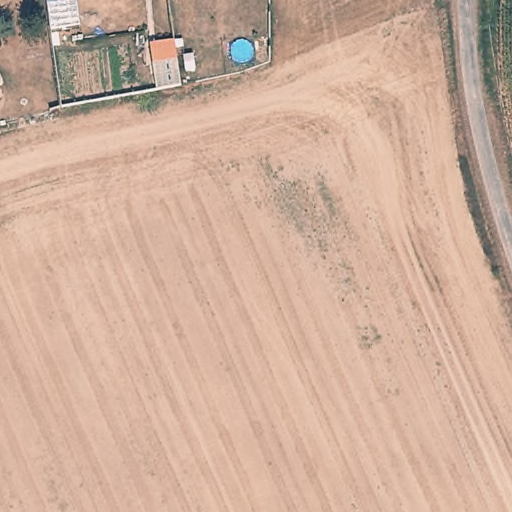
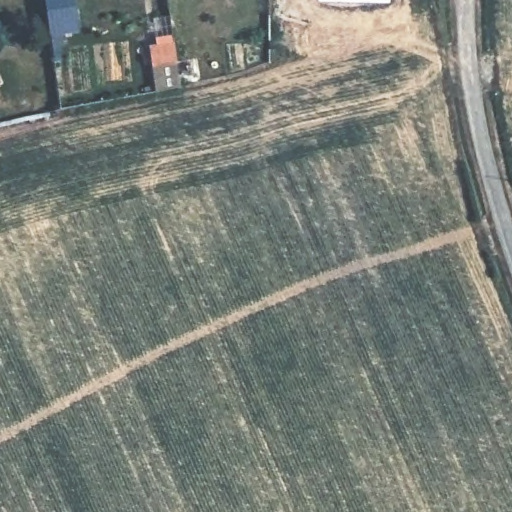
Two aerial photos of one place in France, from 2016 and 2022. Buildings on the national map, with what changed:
unchanged [(177,62),(154,64),(150,45),(174,41),(177,62)]

